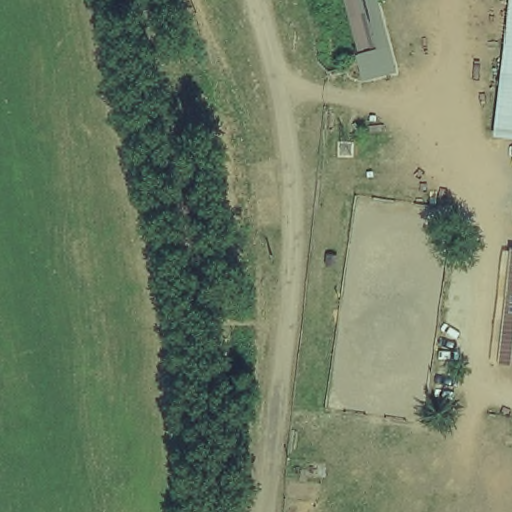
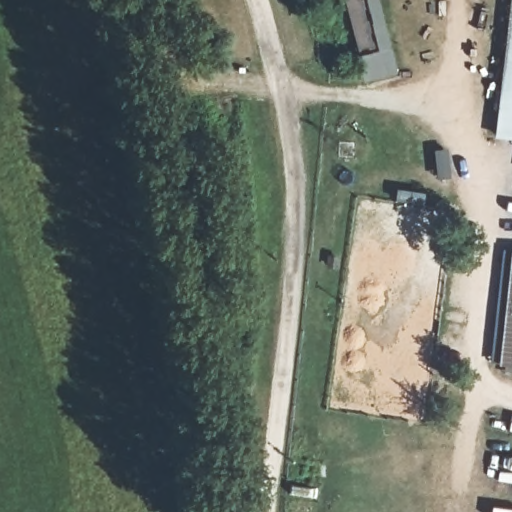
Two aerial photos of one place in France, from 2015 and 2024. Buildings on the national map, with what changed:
unchanged [(389,64),(366,69),(347,0),(371,0),(389,64)]
unchanged [(498,140),(512,15),(512,142),(498,140)]
unchanged [(512,300),(512,369),(504,368),(512,300)]

